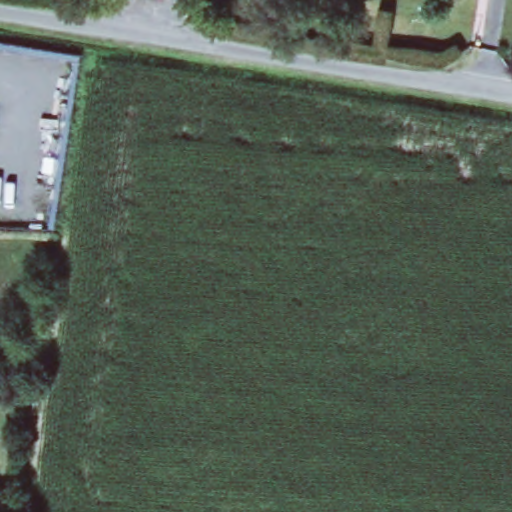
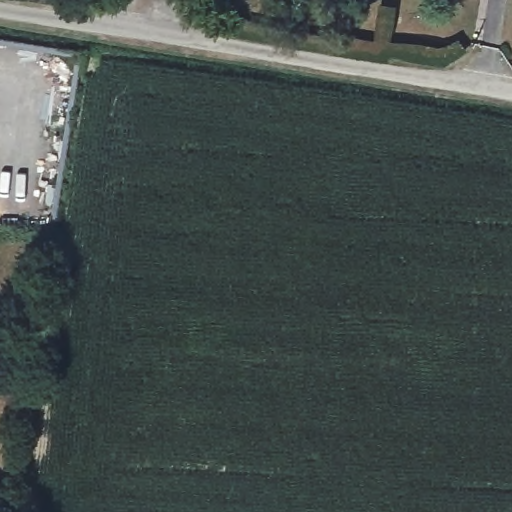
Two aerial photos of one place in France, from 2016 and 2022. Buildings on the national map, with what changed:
[]

